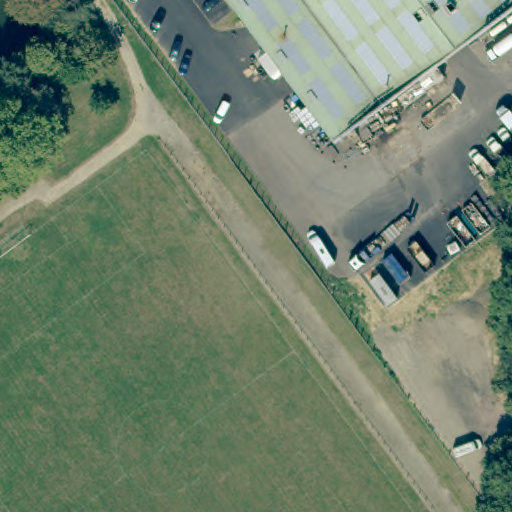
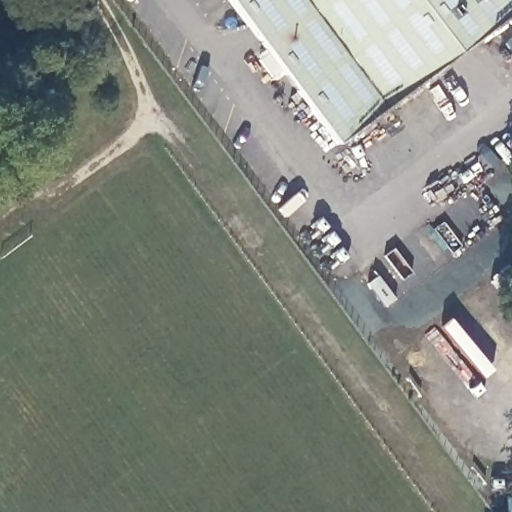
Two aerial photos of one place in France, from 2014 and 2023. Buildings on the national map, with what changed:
unchanged [(329,138),(228,0),(512,0),(512,4),(329,138)]

